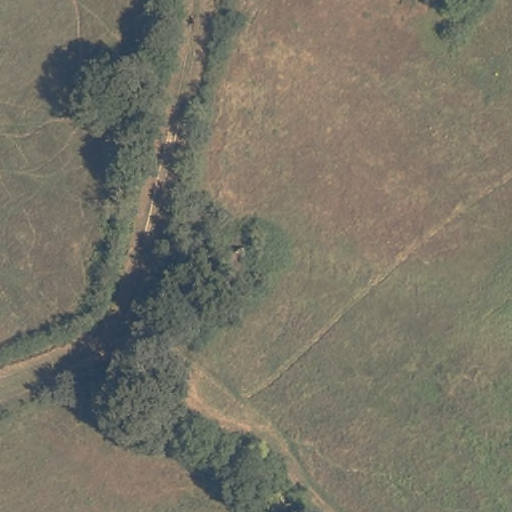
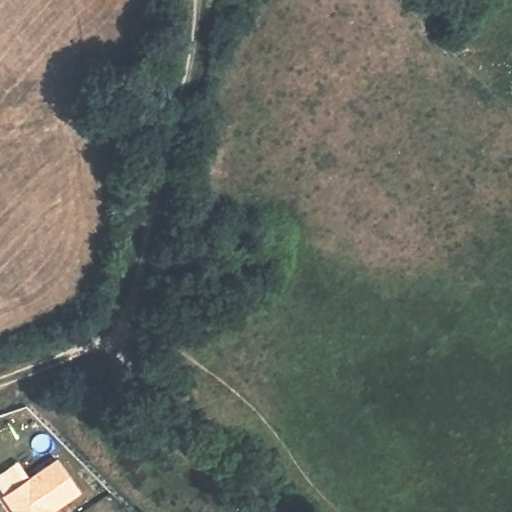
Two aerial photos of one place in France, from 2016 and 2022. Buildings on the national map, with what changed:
new [(58,458),(81,492),(55,510),(56,512),(14,512),(3,496),(58,458)]

